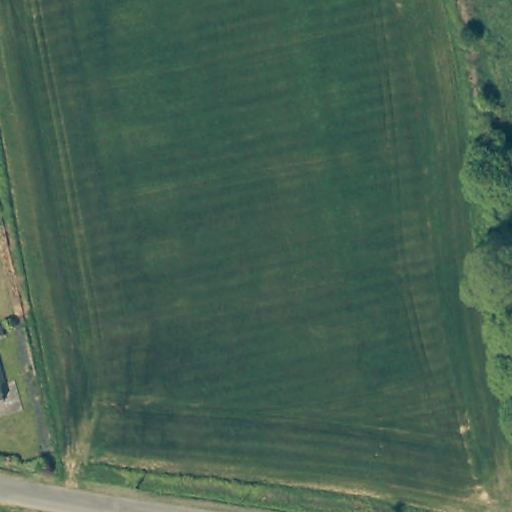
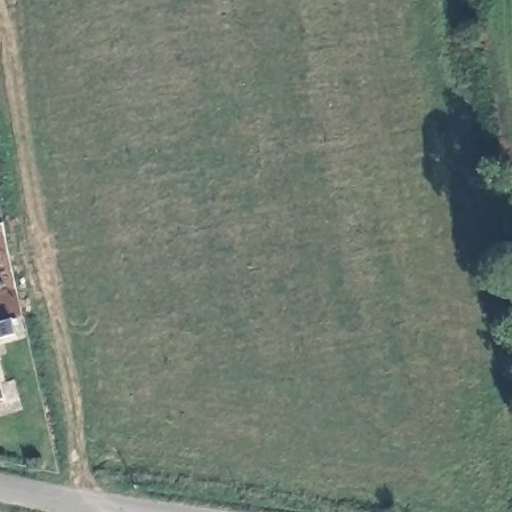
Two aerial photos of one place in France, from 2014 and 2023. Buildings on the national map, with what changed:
unchanged [(6,396),(0,398),(0,379),(6,396)]

